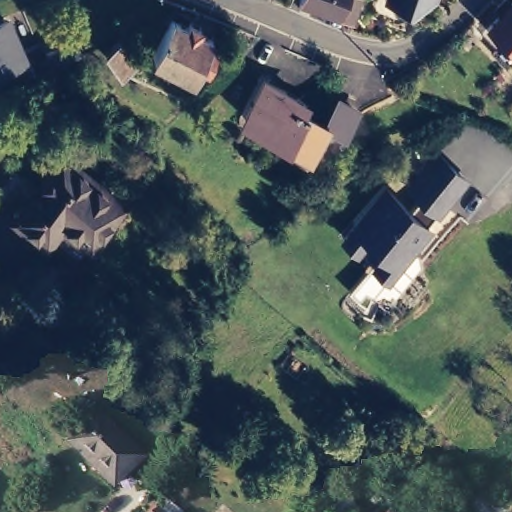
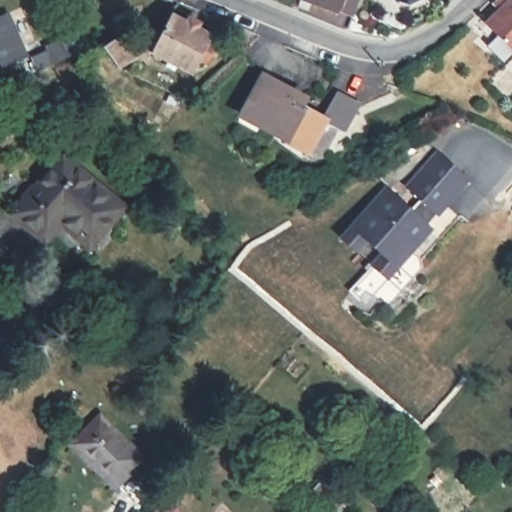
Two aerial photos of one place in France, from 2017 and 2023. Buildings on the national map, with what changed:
unchanged [(306,12),(298,9),(301,1),(298,0),(359,0),(351,20),(310,5),(306,12)]
unchanged [(390,0),(419,0),(405,5),(390,0)]
unchanged [(493,0),(512,0),(512,47),(484,20),(498,5),(493,0)]
unchanged [(173,15),(186,22),(189,18),(199,22),(197,27),(211,34),(207,41),(214,45),(204,64),(197,61),(190,72),(152,53),(173,15)]
unchanged [(21,61),(0,71),(0,27),(5,25),(21,61)]
unchanged [(136,35),(131,39),(141,53),(125,65),(110,44),(132,28),(136,35)]
unchanged [(89,30),(95,43),(66,55),(60,42),(89,30)]
unchanged [(238,100),(260,62),(300,84),(296,91),(302,95),(301,96),(317,106),(301,134),(238,100)]
unchanged [(350,93),(336,116),(317,106),(331,83),(350,93)]
unchanged [(470,182),(440,218),(404,188),(436,151),(470,182)]
unchanged [(80,232),(61,217),(45,235),(14,210),(62,153),(121,202),(103,223),(88,240),(80,232)]
unchanged [(381,253),(353,227),(387,188),(430,228),(387,277),(373,264),(381,253)]
unchanged [(95,410),(141,447),(118,476),(100,460),(97,463),(71,441),(95,410)]

